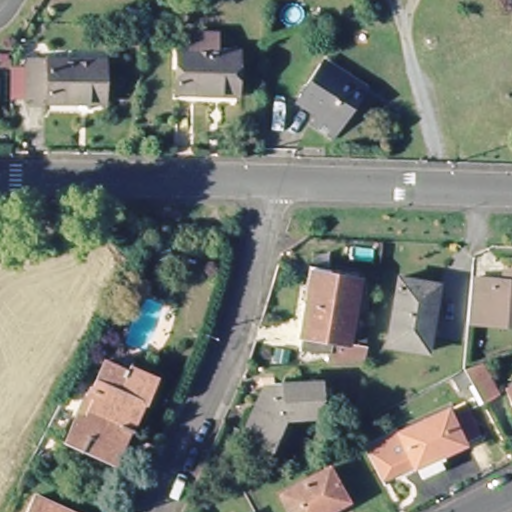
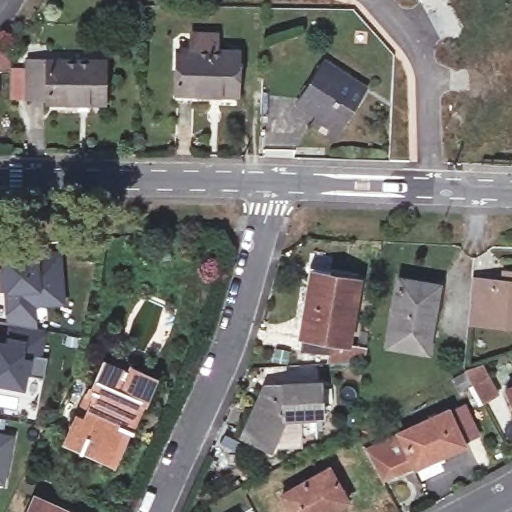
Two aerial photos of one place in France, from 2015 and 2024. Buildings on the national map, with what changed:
unchanged [(179,102),(178,91),(178,49),(195,48),(194,31),(217,31),(217,48),(236,48),(236,90),(236,101),(179,102)]
unchanged [(26,60),(104,61),(103,106),(47,105),(47,97),(26,97),(26,60)]
unchanged [(367,91),(339,135),(315,120),(324,107),(300,92),(319,61),(367,91)]
new [(3,258),(40,255),(61,257),(65,304),(36,307),(37,323),(6,319),(4,291),(0,291),(0,266),(4,265),(3,258)]
unchanged [(338,358),(339,351),(308,346),(322,273),(314,272),(316,258),(340,262),(339,272),(365,277),(354,340),(374,343),(372,356),(338,358)]
unchanged [(398,279),(438,285),(430,347),(389,342),(398,279)]
unchanged [(471,320),(476,280),(512,288),(512,329),(471,320)]
new [(4,323),(37,330),(32,356),(40,357),(36,378),(19,375),(16,388),(0,385),(0,338),(4,323)]
unchanged [(499,396),(483,404),(465,371),(483,366),(499,396)]
unchanged [(147,409),(133,441),(124,437),(109,470),(66,451),(93,393),(100,397),(108,378),(113,368),(152,386),(148,397),(143,407),(147,409)]
unchanged [(263,393),(317,387),(321,422),(285,428),(271,457),(239,444),(263,393)]
unchanged [(510,391),(512,390),(512,395),(510,391)]
unchanged [(382,442),(452,403),(471,437),(401,476),(391,482),(372,447),(382,442)]
unchanged [(0,466),(0,436),(5,437),(0,466)]
unchanged [(329,472),(347,505),(334,512),(294,512),(285,497),(329,472)]
unchanged [(77,512),(33,512),(40,495),(77,512)]

